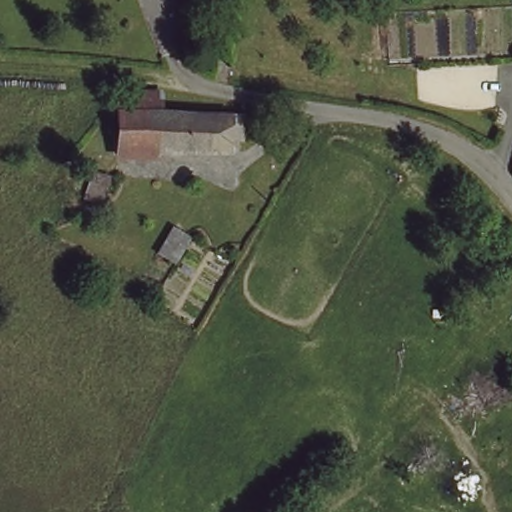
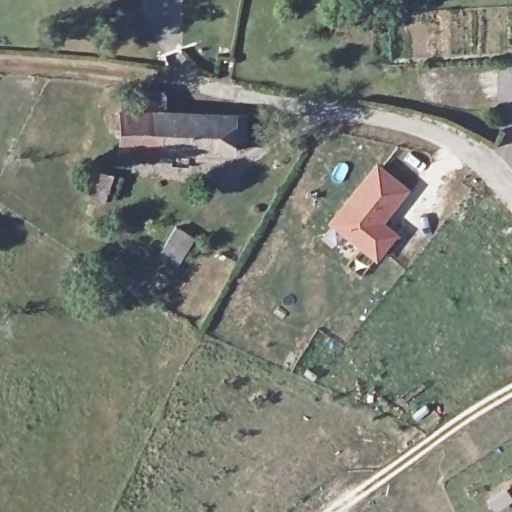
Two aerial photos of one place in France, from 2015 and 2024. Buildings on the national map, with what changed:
unchanged [(246,109),(246,132),(234,131),(234,152),(122,150),(124,106),(124,85),(160,87),(160,106),(234,108),(246,109)]
unchanged [(115,166),(108,193),(88,188),(96,161),(115,166)]
new [(398,233),(376,262),(327,223),(375,161),(409,189),(383,222),(398,233)]
unchanged [(196,228),(181,254),(164,242),(179,218),(196,228)]

